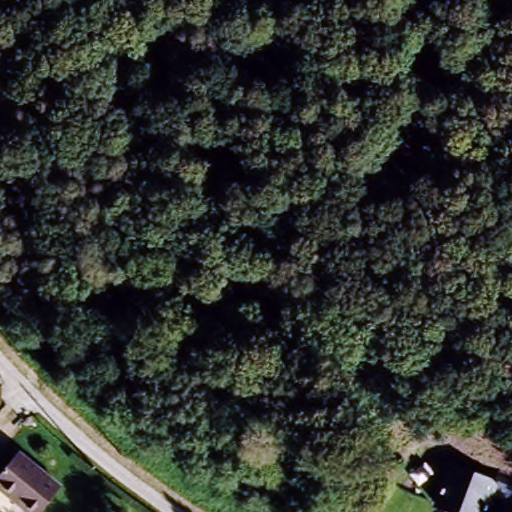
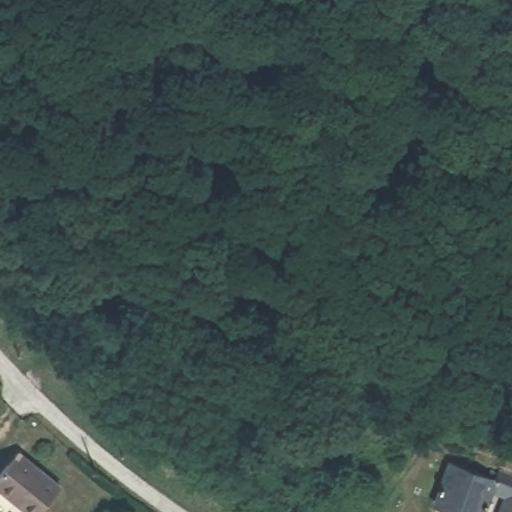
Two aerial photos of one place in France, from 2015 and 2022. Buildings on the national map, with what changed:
unchanged [(0,468),(12,452),(14,450),(55,483),(49,491),(34,512),(29,512),(0,489),(0,468)]
unchanged [(504,499),(493,495),(485,512),(437,512),(430,509),(447,461),(493,481),(496,475),(512,481),(512,512),(498,512),(504,499)]

